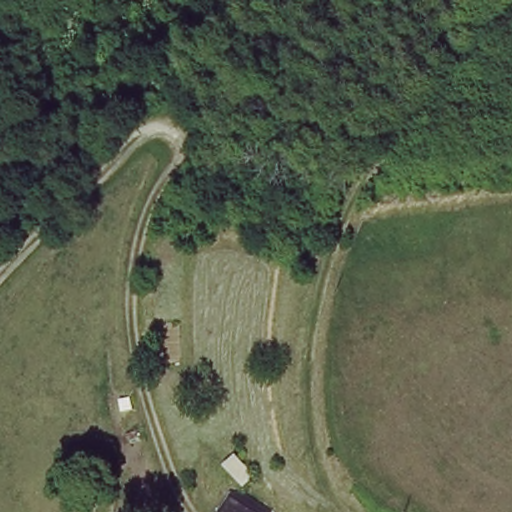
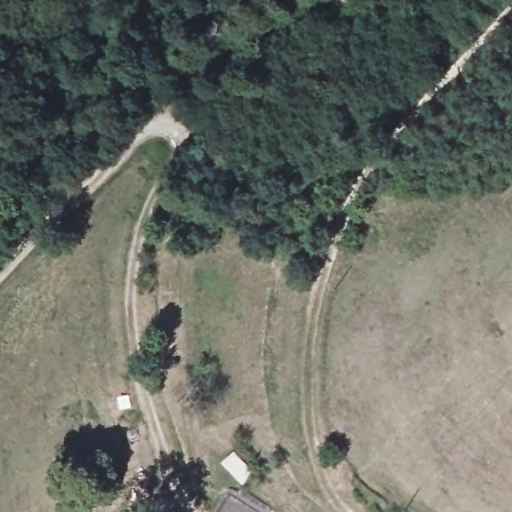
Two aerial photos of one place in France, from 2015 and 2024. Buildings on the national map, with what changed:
unchanged [(230,495),(259,512),(218,512),(230,495)]

